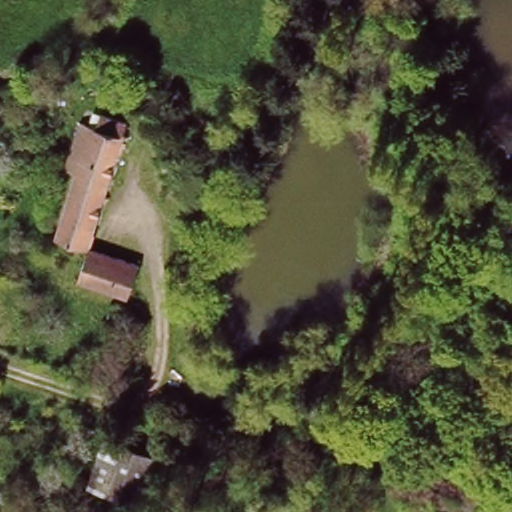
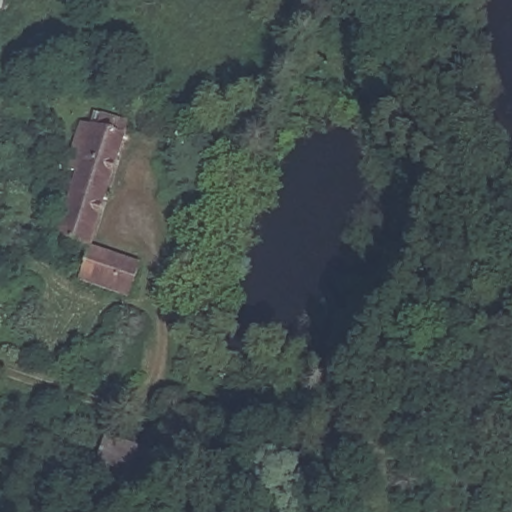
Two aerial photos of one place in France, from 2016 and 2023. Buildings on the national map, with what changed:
unchanged [(98,126),(102,111),(125,119),(88,250),(55,240),(70,180),(63,178),(75,141),(80,121),(98,126)]
unchanged [(143,263),(131,302),(79,287),(85,264),(88,250),(143,263)]
unchanged [(149,455),(144,502),(104,497),(111,451),(149,455)]

